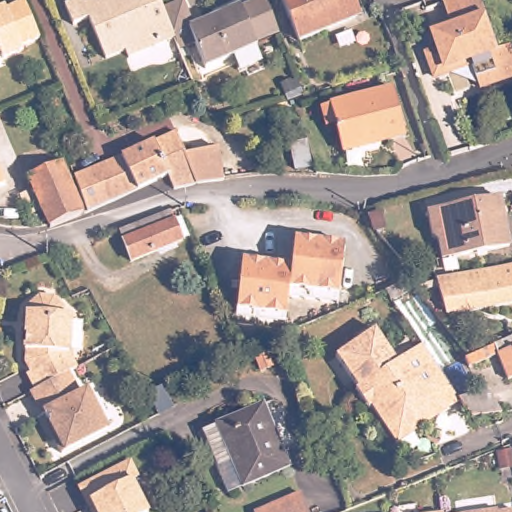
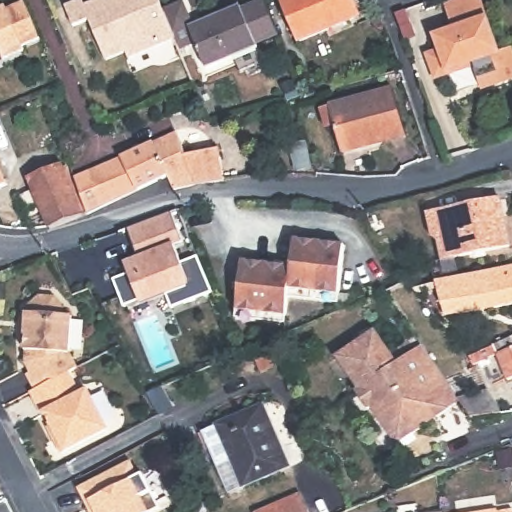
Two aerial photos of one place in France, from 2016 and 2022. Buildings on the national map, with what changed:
unchanged [(171,43),(124,61),(121,54),(101,61),(86,22),(75,27),(65,3),(74,0),(78,0),(81,7),(99,0),(156,0),(171,43)]
unchanged [(353,19),(298,41),(282,0),(345,0),(353,19)]
unchanged [(437,78),(434,70),(431,63),(429,57),(442,52),(437,37),(454,31),(444,4),(456,0),(481,0),(482,1),(500,52),(510,47),(512,52),(512,77),(481,89),(472,66),(451,73),(437,78)]
unchanged [(206,67),(190,27),(215,17),(217,19),(242,9),(242,10),(265,1),(280,36),(256,46),(256,47),(206,67)]
unchanged [(19,5),(33,42),(16,49),(17,53),(0,60),(0,8),(1,12),(19,5)]
unchanged [(393,90),(406,140),(390,144),(388,139),(340,151),(329,107),(393,90)]
unchanged [(179,132),(190,156),(223,150),(227,182),(199,185),(177,191),(173,175),(98,211),(93,212),(78,179),(146,149),(179,132)]
unchanged [(32,181),(65,167),(87,216),(69,224),(53,230),(51,227),(32,181)]
unchanged [(441,246),(434,242),(429,217),(448,212),(502,199),(512,244),(512,249),(460,262),(445,265),(441,246)]
unchanged [(169,218),(180,247),(130,266),(118,237),(169,218)]
unchanged [(239,276),(241,263),(261,265),(273,267),(290,268),(291,251),(292,241),(309,243),(342,246),(337,296),(288,291),(287,299),(285,317),(236,312),(239,276)]
new [(179,265),(197,258),(211,293),(171,310),(164,293),(123,310),(112,282),(133,274),(130,267),(138,264),(174,251),(179,265)]
unchanged [(458,275),(466,273),(466,275),(512,266),(512,304),(485,310),(445,315),(435,282),(459,278),(458,275)]
unchanged [(68,379),(34,396),(26,381),(30,379),(25,370),(26,359),(24,359),(26,322),(28,322),(28,315),(39,306),(53,307),(62,317),(61,324),(70,325),(67,362),(76,375),(68,379)]
unchanged [(369,415),(366,416),(353,397),(356,396),(335,363),(374,337),(396,370),(421,353),(452,400),(458,408),(429,428),(419,435),(394,452),(369,415)]
unchanged [(512,340),(512,380),(510,381),(502,355),(486,362),(478,366),(473,357),(479,353),(501,345),(512,340)]
unchanged [(68,379),(79,402),(87,397),(106,437),(60,460),(52,443),(55,442),(45,420),(42,421),(31,398),(33,397),(34,396),(68,379)]
unchanged [(459,411),(487,406),(490,405),(499,423),(471,428),(459,411)]
unchanged [(231,495),(204,433),(218,427),(260,409),(278,451),(283,449),(292,469),(245,488),(231,495)]
unchanged [(132,486),(146,512),(90,512),(80,492),(131,467),(139,482),(132,486)]
unchanged [(311,512),(272,512),(305,499),(311,512)]

